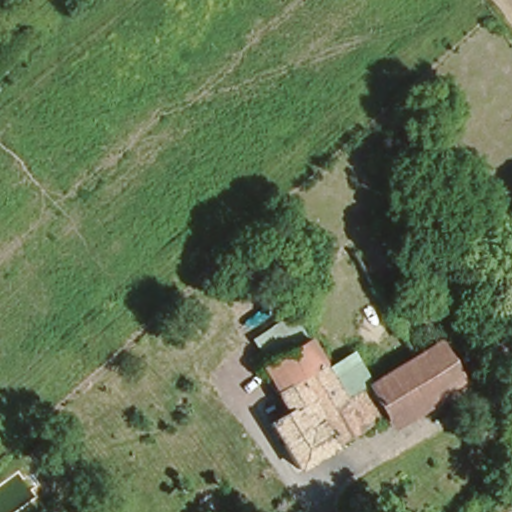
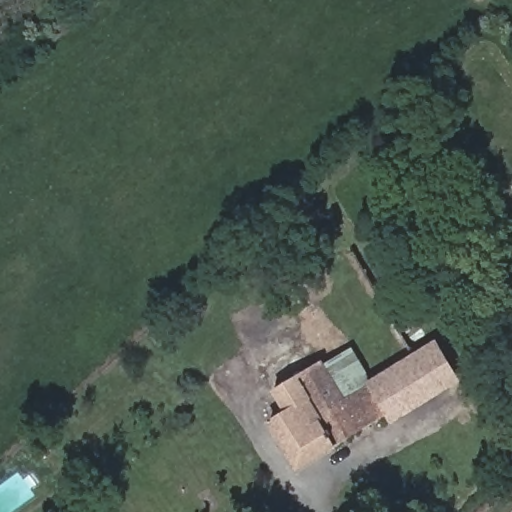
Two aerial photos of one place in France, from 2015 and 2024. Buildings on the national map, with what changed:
unchanged [(369,205),(435,316),(429,319),(406,333),(340,224),(369,205)]
unchanged [(390,436),(382,422),(336,449),(292,474),(264,422),(282,414),(268,394),(350,351),(365,385),(438,337),(467,389),(390,436)]

